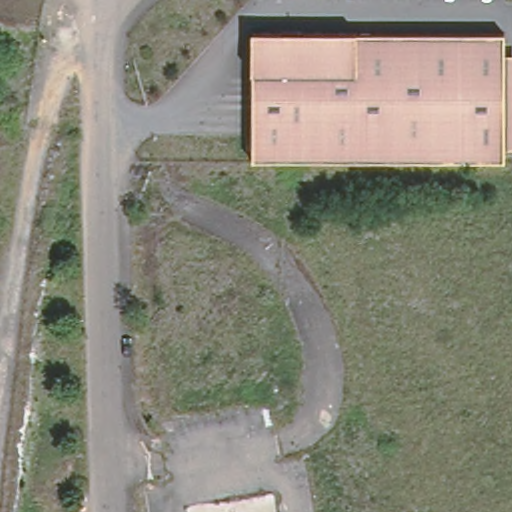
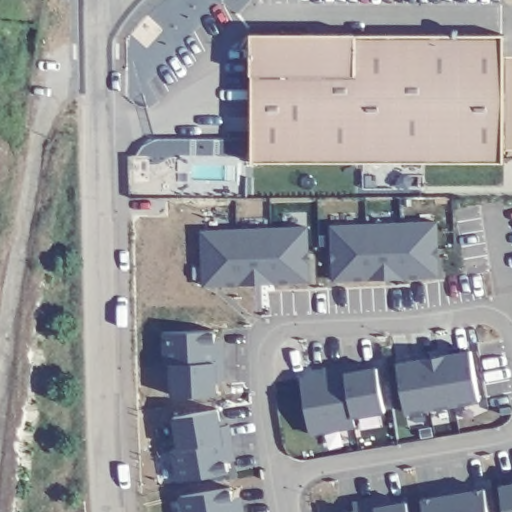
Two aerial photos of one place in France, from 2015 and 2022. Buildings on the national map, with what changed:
unchanged [(249,72),(247,72),(247,31),(277,31),(300,31),(353,29),(353,31),(502,30),(502,160),(249,160),(249,72)]
new [(400,220),(435,218),(437,272),(402,274),(400,220)]
new [(365,221),(400,220),(402,274),(368,275),(365,221)]
new [(330,222),(365,221),(368,275),(332,276),(330,222)]
new [(272,278),(270,224),(306,223),(308,277),(272,278)]
new [(236,226),(270,224),(272,278),(238,280),(236,226)]
new [(202,227),(236,226),(238,280),(204,281),(202,227)]
new [(213,333),(215,397),(169,399),(168,365),(162,366),(163,334),(213,333)]
new [(467,352),(476,403),(405,416),(395,364),(467,352)]
new [(375,368),(382,415),(352,420),(353,429),(309,435),(300,381),(375,368)]
new [(219,427),(230,425),(235,462),(224,463),(227,476),(175,483),(170,453),(175,452),(172,417),(217,411),(219,427)]
new [(512,483),(512,512),(504,512),(500,485),(512,483)]
new [(425,512),(423,498),(485,488),(489,512),(425,512)]
new [(232,500),(242,499),(245,512),(182,512),(180,497),(230,490),(232,500)]
new [(342,512),(342,511),(407,500),(408,512),(342,512)]

